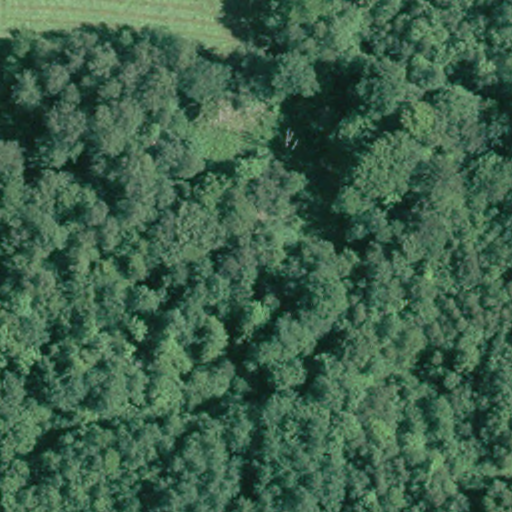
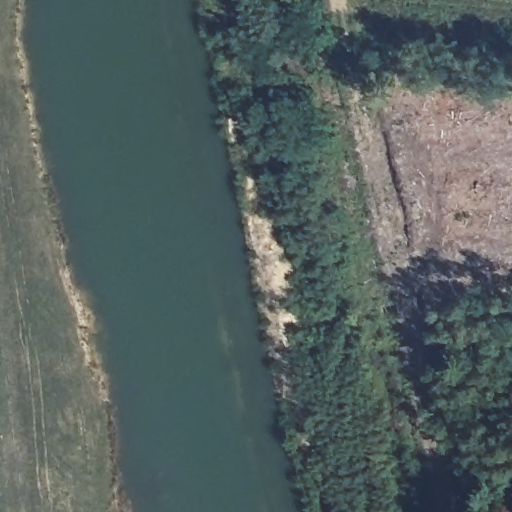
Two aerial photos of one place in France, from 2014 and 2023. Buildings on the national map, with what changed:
[]

